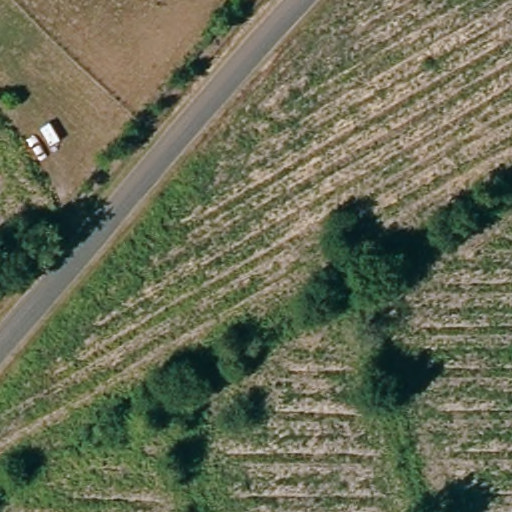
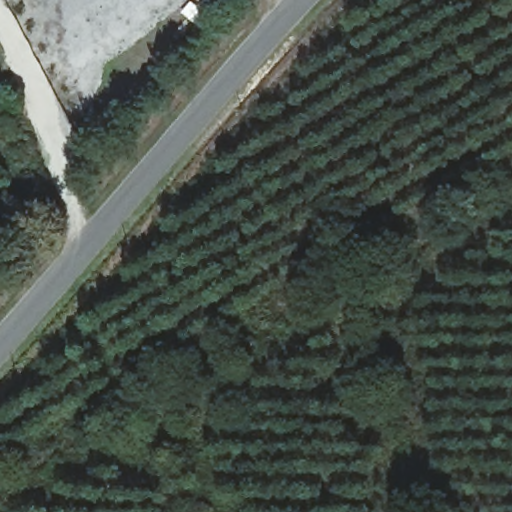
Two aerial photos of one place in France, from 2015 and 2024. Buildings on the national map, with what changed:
[]

